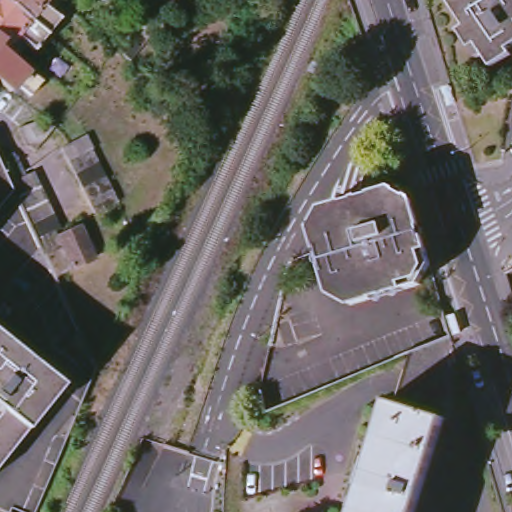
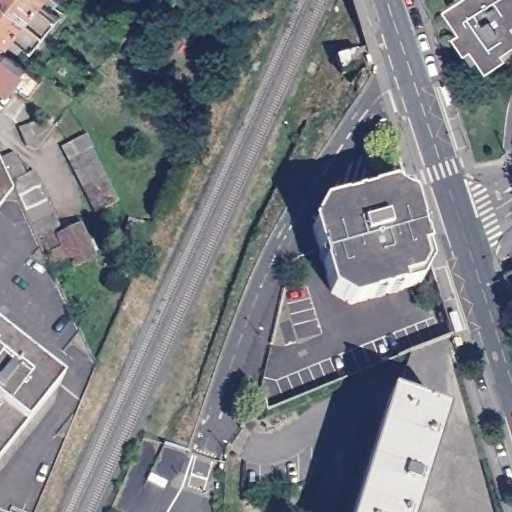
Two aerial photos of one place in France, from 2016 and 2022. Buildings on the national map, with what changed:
unchanged [(0,0),(4,0),(48,35),(36,51),(16,35),(9,46),(8,45),(4,42),(0,38),(0,0)]
unchanged [(44,4),(62,19),(48,35),(4,0),(48,0),(44,4)]
unchanged [(504,40),(508,46),(487,57),(474,36),(469,40),(459,21),(463,17),(453,0),(512,0),(512,36),(504,40)]
unchanged [(146,29),(153,34),(153,35),(148,41),(141,36),(146,29)]
unchanged [(0,46),(0,38),(4,42),(0,46)]
unchanged [(28,67),(44,79),(31,95),(17,83),(12,90),(0,80),(0,46),(27,68),(28,67)]
unchanged [(336,55),(366,46),(371,64),(341,73),(336,55)]
unchanged [(38,147),(27,144),(19,127),(46,117),(57,125),(54,127),(38,147)]
unchanged [(69,159),(63,146),(89,134),(95,147),(93,149),(118,203),(94,213),(69,159)]
unchanged [(34,170),(61,228),(83,222),(99,259),(56,278),(14,190),(0,209),(0,160),(13,184),(34,170)]
unchanged [(416,202),(434,261),(424,283),(354,306),(333,295),(313,229),(324,209),(393,187),(416,202)]
unchanged [(126,254),(133,257),(130,264),(123,261),(126,254)]
unchanged [(508,283),(512,281),(512,298),(508,283)]
unchanged [(0,466),(0,333),(63,384),(0,466)]
unchanged [(417,512),(352,512),(389,397),(447,415),(417,512)]

